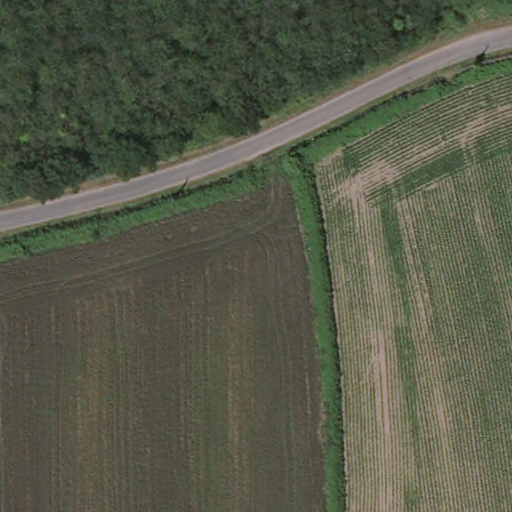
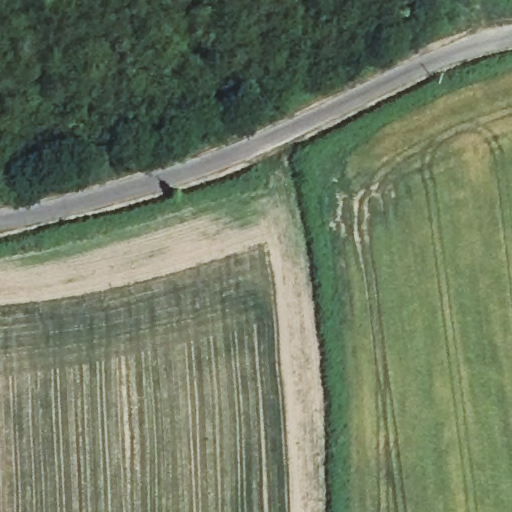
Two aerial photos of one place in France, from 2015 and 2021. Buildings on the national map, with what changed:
[]

